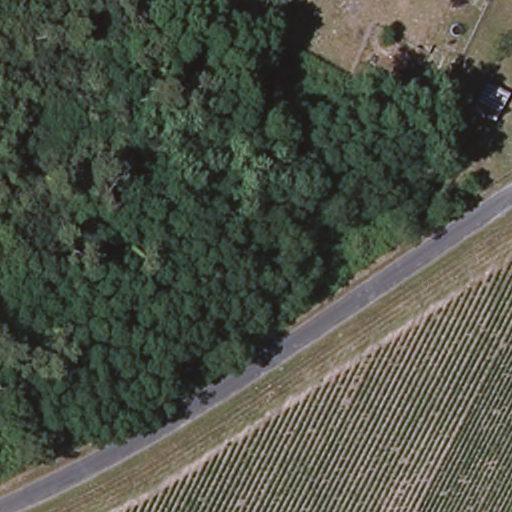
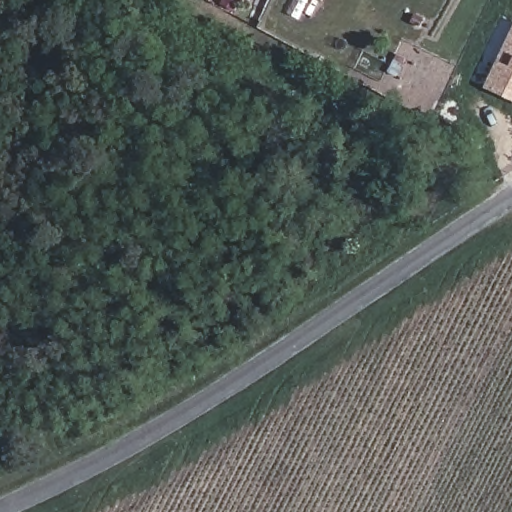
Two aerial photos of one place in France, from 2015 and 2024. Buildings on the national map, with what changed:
new [(512,33),(512,102),(484,89),(512,33)]
unchanged [(492,130),(470,117),(484,89),(506,101),(492,130)]

